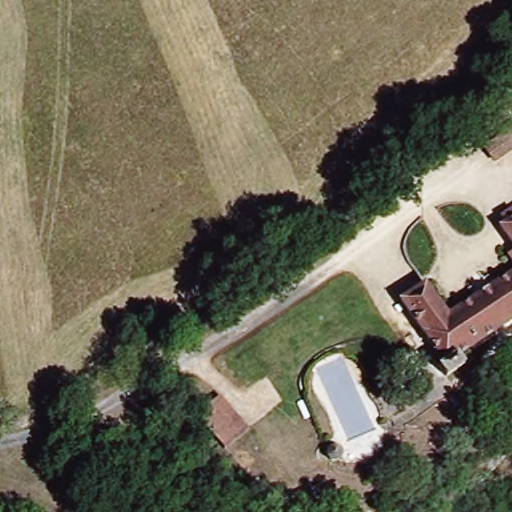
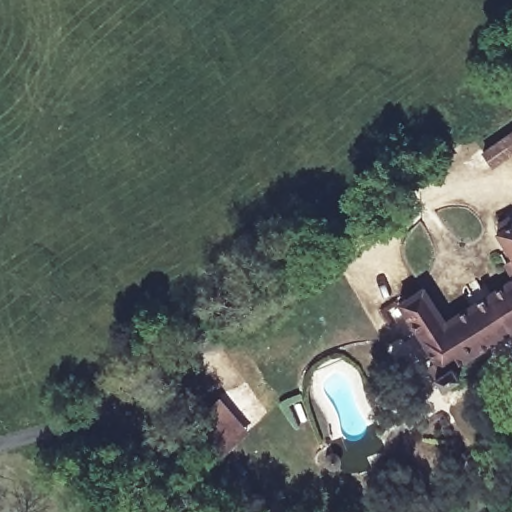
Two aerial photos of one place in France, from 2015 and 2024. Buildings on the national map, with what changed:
unchanged [(476,375),(458,388),(445,371),(452,365),(402,299),(423,283),(446,316),(510,271),(487,234),(492,231),(512,219),(512,333),(468,364),(476,375)]
unchanged [(225,390),(260,429),(228,452),(197,413),(225,390)]

